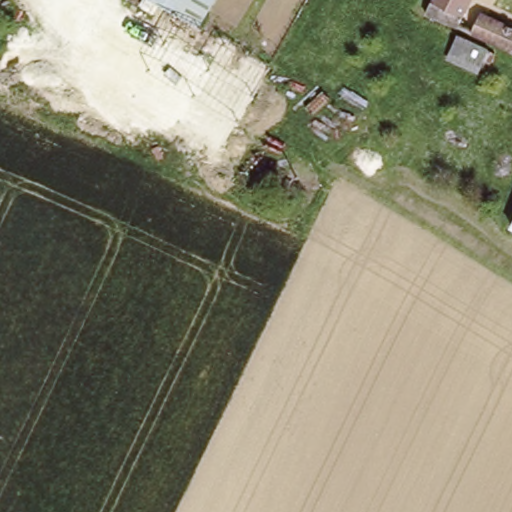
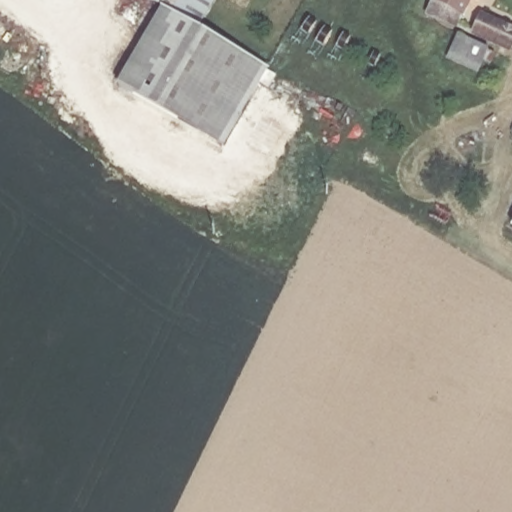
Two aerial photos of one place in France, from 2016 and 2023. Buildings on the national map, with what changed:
unchanged [(152,0),(217,0),(201,27),(152,0)]
unchanged [(430,17),(439,0),(478,0),(460,32),(430,17)]
new [(117,87),(163,8),(270,70),(225,149),(117,87)]
unchanged [(512,56),(477,37),(490,15),(512,27),(512,56)]
unchanged [(491,52),(490,57),(496,60),(492,68),(485,65),(480,78),(453,66),(465,40),(491,52)]

